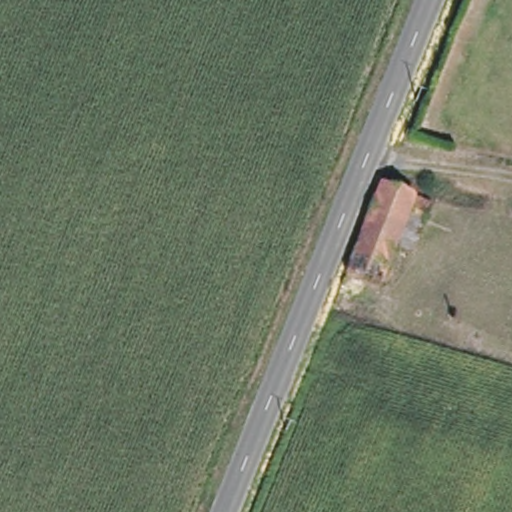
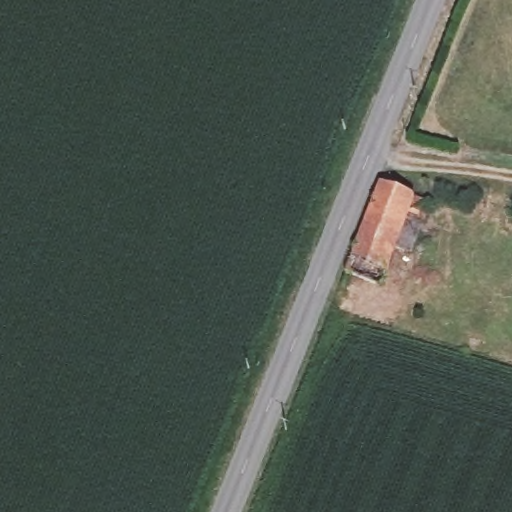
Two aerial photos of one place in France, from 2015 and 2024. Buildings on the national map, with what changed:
unchanged [(382,187),(432,210),(426,226),(408,219),(379,290),(345,276),(382,187)]

